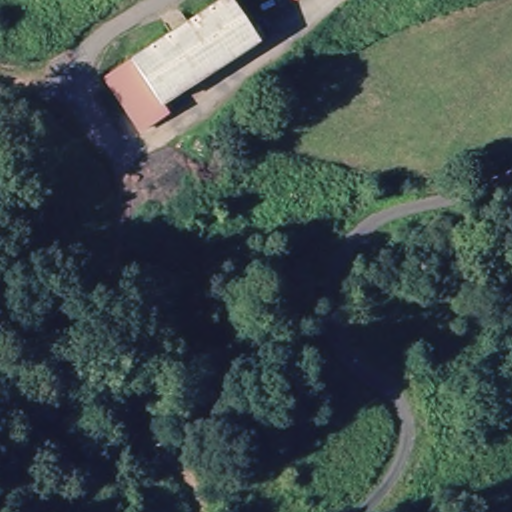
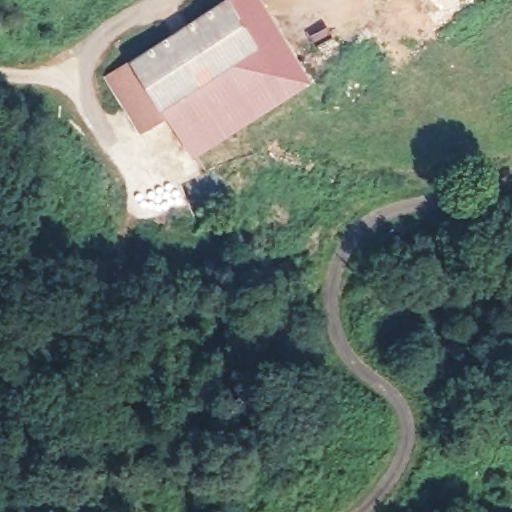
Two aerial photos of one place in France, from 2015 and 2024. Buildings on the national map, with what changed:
new [(158,101),(256,52),(233,3),(160,40),(222,0),(262,0),(313,79),(194,156),(162,110),(158,101)]
unchanged [(132,124),(103,69),(233,3),(256,52),(158,101),(162,110),(132,124)]

